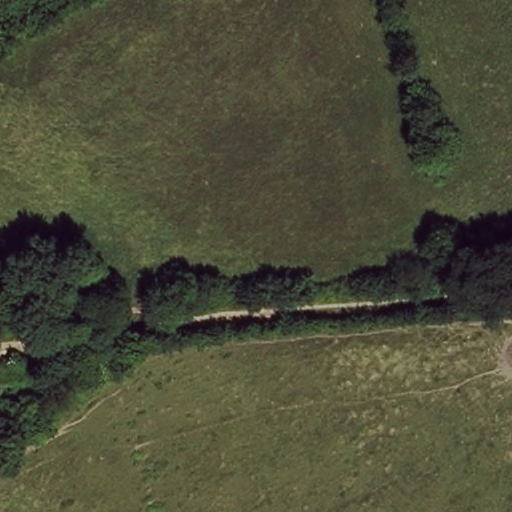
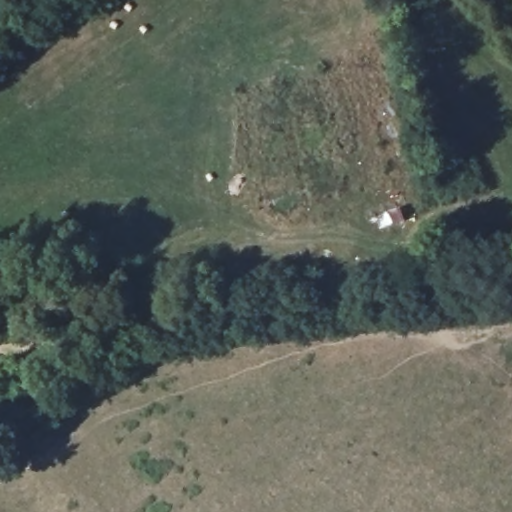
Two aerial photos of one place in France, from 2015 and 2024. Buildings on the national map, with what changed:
unchanged [(7,364),(46,362),(46,391),(39,392),(18,393),(18,399),(0,400),(0,364),(7,364)]

